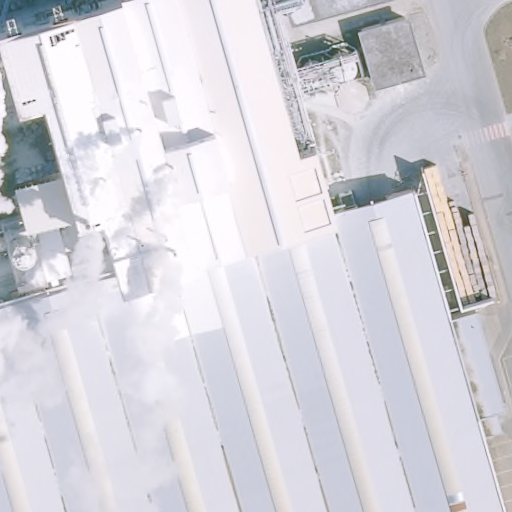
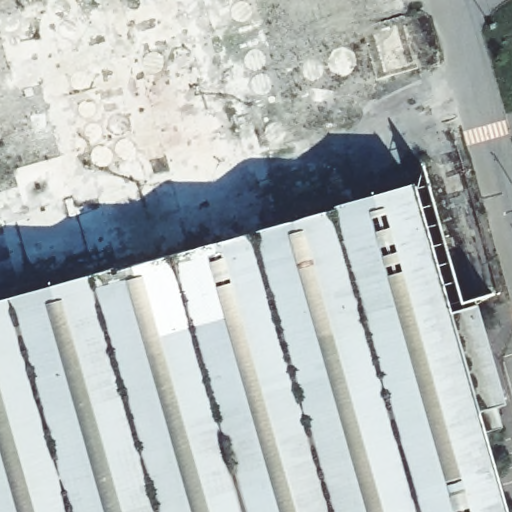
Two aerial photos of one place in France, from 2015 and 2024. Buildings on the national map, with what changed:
demolished [(52,0),(249,0),(287,133),(307,128),(333,210),(120,272),(97,196),(75,201),(40,81),(15,88),(0,37),(0,15),(52,0)]
demolished [(299,0),(342,0),(302,11),(299,0)]
demolished [(360,30),(397,20),(412,68),(375,79),(360,30)]
unchanged [(333,210),(410,188),(447,315),(477,307),(505,401),(498,403),(504,428),(482,435),(504,512),(0,512),(0,307),(120,272),(333,210)]

